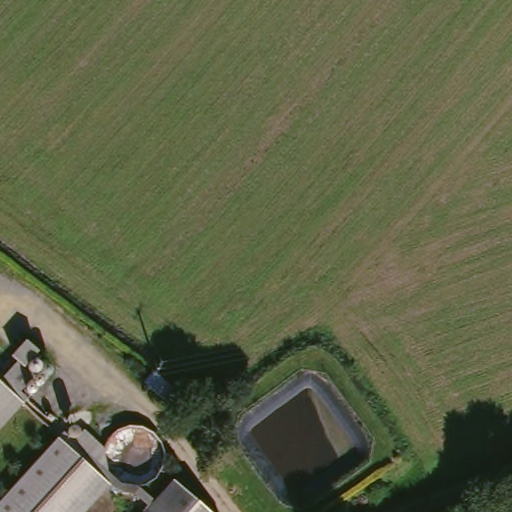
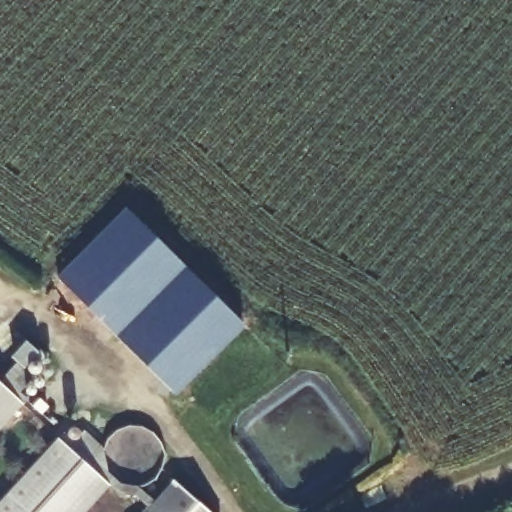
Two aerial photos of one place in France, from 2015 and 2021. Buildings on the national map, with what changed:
new [(122,209),(240,323),(172,394),(53,280),(122,209)]
unchanged [(19,392),(16,394),(3,384),(0,381),(0,380),(13,366),(29,380),(19,392)]
unchanged [(21,406),(0,429),(0,387),(21,406)]
new [(68,427),(103,458),(103,466),(108,475),(117,484),(128,489),(137,488),(154,503),(147,511),(105,483),(57,441),(68,427)]
unchanged [(105,483),(80,512),(0,512),(0,505),(57,441),(105,483)]
unchanged [(173,486),(204,512),(150,512),(173,486)]

